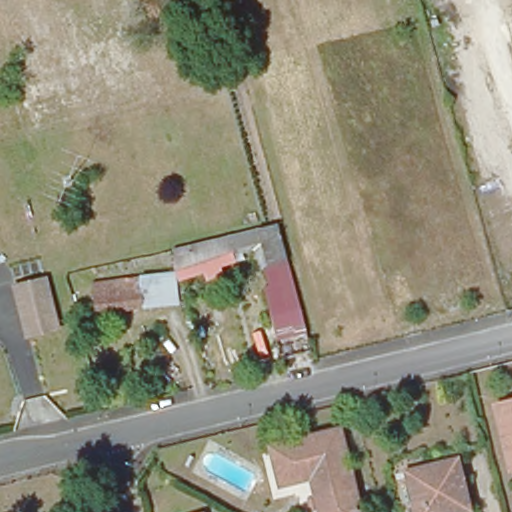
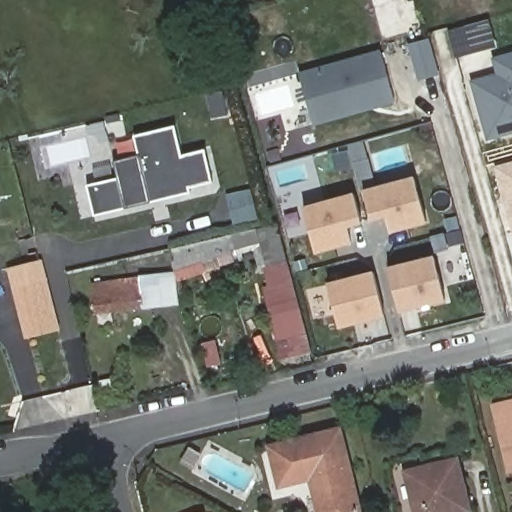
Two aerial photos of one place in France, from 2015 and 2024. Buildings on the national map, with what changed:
new [(427,37),(437,74),(419,79),(408,42),(427,37)]
new [(312,121),(298,71),(381,48),(395,97),(380,102),(370,105),(312,121)]
new [(493,56),(512,51),(512,129),(487,136),(471,80),(491,74),(497,72),(493,56)]
new [(226,116),(211,120),(205,95),(220,92),(226,116)]
new [(85,189),(90,187),(116,181),(112,164),(137,159),(143,157),(137,158),(132,139),(138,137),(173,129),(180,159),(203,153),(211,186),(188,191),(189,196),(163,202),(148,206),(97,218),(92,220),(85,189)]
new [(512,161),(512,227),(495,166),(512,161)]
new [(416,179),(428,222),(391,233),(387,216),(372,221),(365,194),(416,179)]
new [(355,196),(363,224),(348,228),(352,244),(316,255),(304,211),(355,196)]
unchanged [(308,347),(309,348),(310,351),(280,359),(259,281),(265,280),(259,259),(266,257),(258,230),(274,226),(308,347)]
unchanged [(170,252),(203,244),(206,253),(228,246),(234,262),(219,267),(222,276),(205,282),(202,273),(185,280),(179,263),(174,266),(170,252)]
new [(433,260),(444,301),(398,313),(387,271),(433,260)]
unchanged [(46,275),(59,331),(23,339),(8,284),(46,275)]
new [(373,275),(383,317),(337,329),(327,286),(373,275)]
unchanged [(95,294),(104,292),(104,286),(137,282),(138,293),(164,291),(166,306),(97,314),(95,294)]
unchanged [(512,407),(512,474),(510,474),(496,411),(512,407)]
unchanged [(280,486),(270,450),(340,430),(362,512),(322,512),(312,477),(280,486)]
unchanged [(454,459),(466,510),(456,512),(414,512),(404,471),(454,459)]

